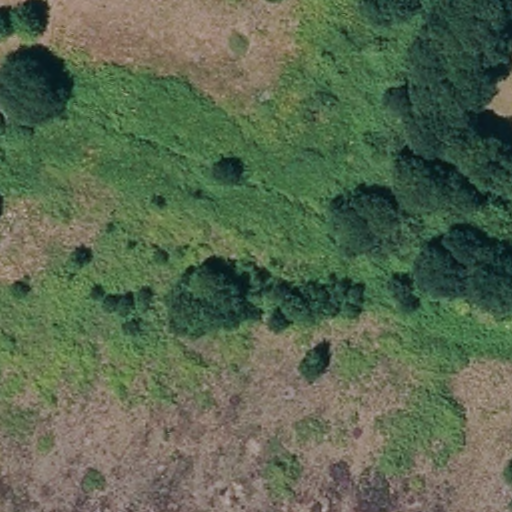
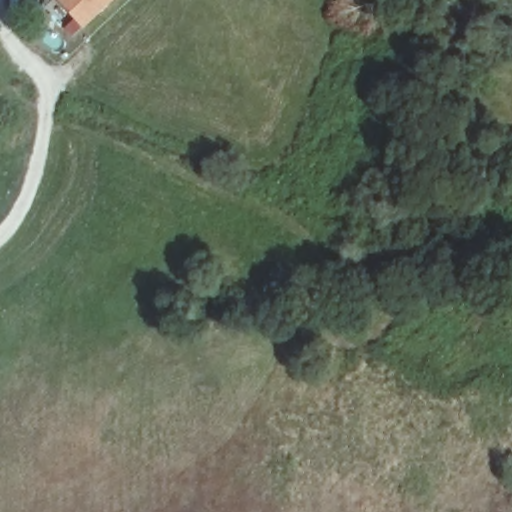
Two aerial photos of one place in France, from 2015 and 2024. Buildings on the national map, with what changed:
new [(71,38),(62,28),(72,19),(55,0),(115,0),(71,38)]

